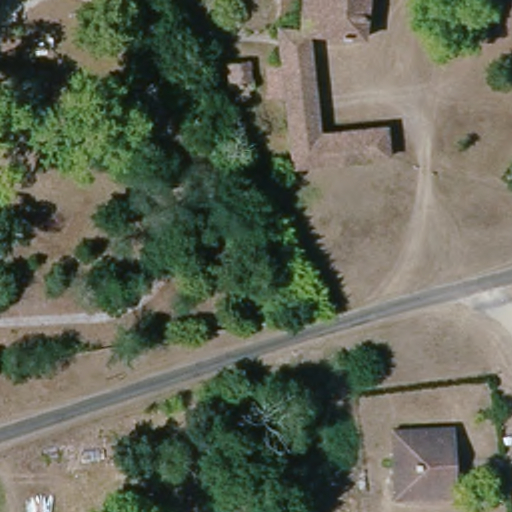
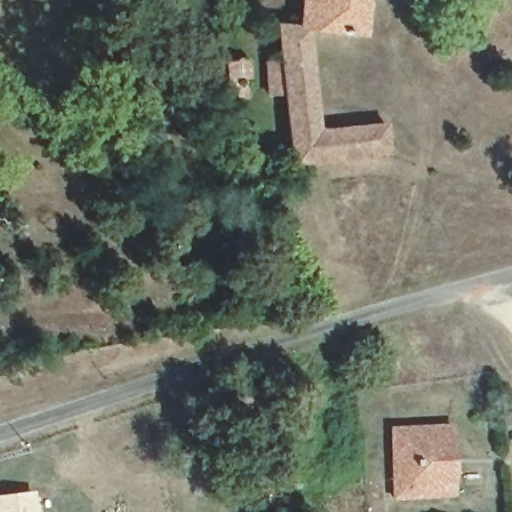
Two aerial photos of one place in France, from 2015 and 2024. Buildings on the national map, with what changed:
unchanged [(369,34),(318,32),(327,126),(390,121),(392,147),(300,156),(284,29),(275,30),(277,7),(308,8),(309,0),(373,0),(369,34)]
unchanged [(274,34),(275,30),(284,29),(300,156),(288,157),(274,34)]
unchanged [(249,55),(258,92),(240,96),(232,59),(249,55)]
unchanged [(448,425),(454,492),(400,497),(396,429),(448,425)]
new [(38,512),(0,512),(0,494),(34,489),(38,512)]

